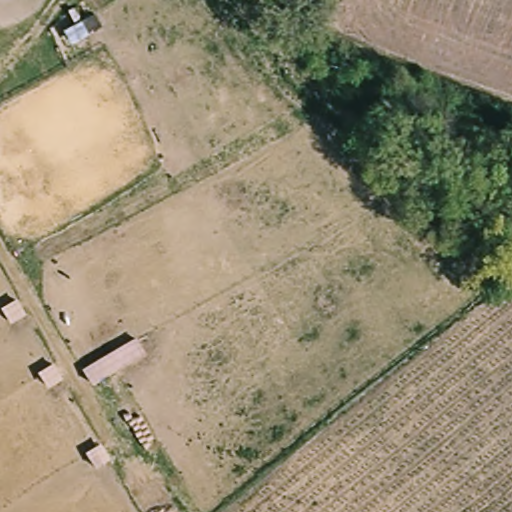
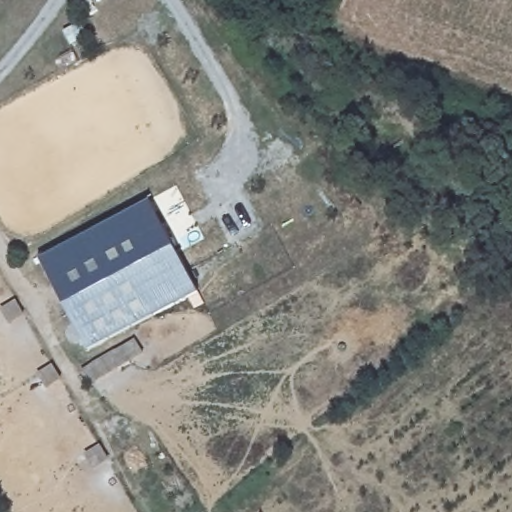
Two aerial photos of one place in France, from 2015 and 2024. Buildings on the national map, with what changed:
new [(88,351),(39,258),(149,199),(199,292),(88,351)]
unchanged [(144,355),(90,387),(81,372),(137,340),(144,355)]

